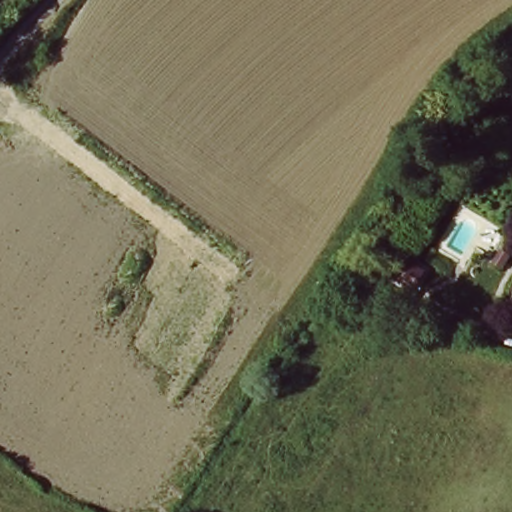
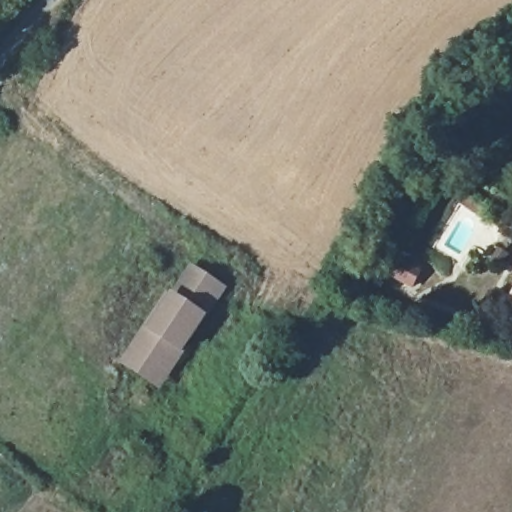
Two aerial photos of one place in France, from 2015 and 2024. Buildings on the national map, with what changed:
unchanged [(417,271),(406,286),(385,272),(395,256),(417,271)]
new [(147,330),(172,292),(170,291),(188,265),(227,288),(208,317),(183,354),(161,390),(118,363),(142,326),(147,330)]

